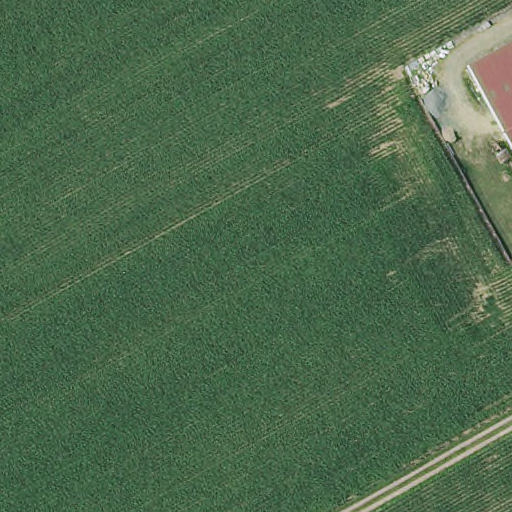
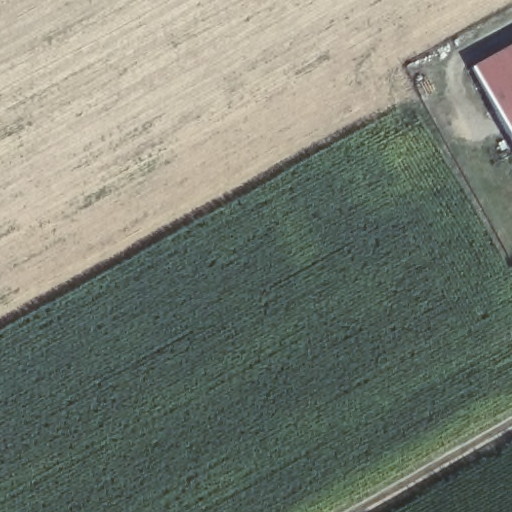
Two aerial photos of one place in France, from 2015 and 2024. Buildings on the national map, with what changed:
unchanged [(512,45),(512,76),(483,92),(470,68),(512,45)]
unchanged [(512,76),(512,143),(483,92),(512,76)]

